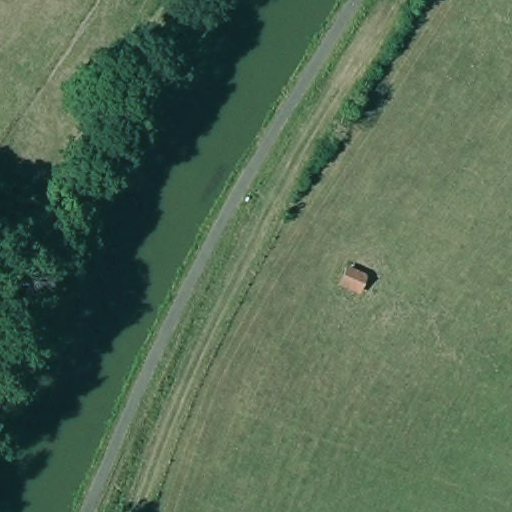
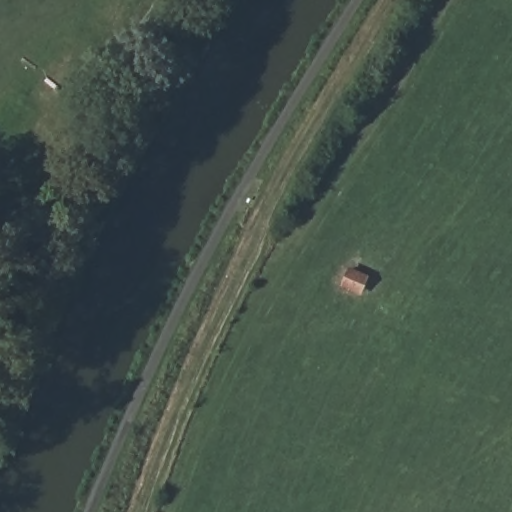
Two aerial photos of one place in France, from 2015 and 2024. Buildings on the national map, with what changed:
unchanged [(348,260),(373,270),(361,297),(338,289),(348,260)]

